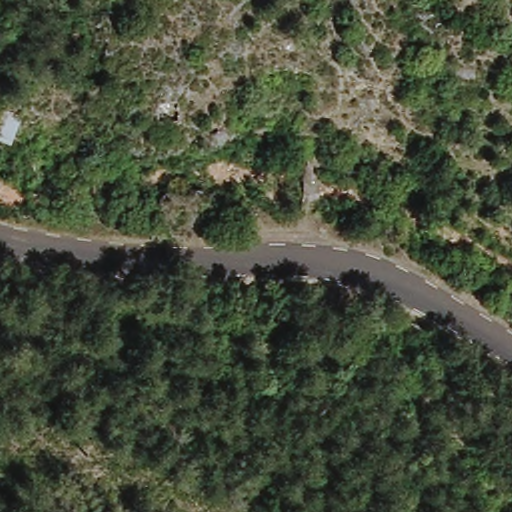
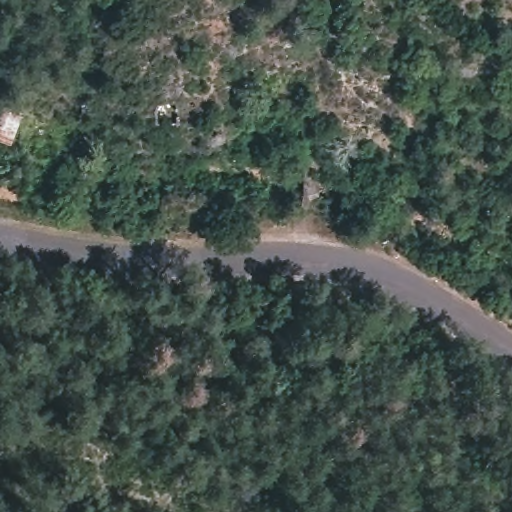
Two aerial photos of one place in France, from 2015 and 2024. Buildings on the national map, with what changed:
unchanged [(0,141),(0,115),(6,105),(17,110),(24,116),(6,144),(0,141)]

